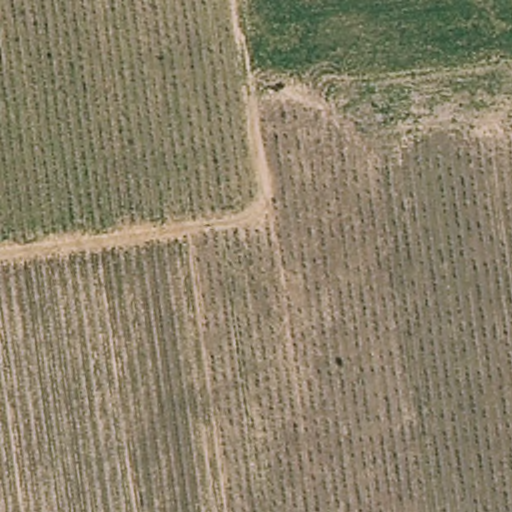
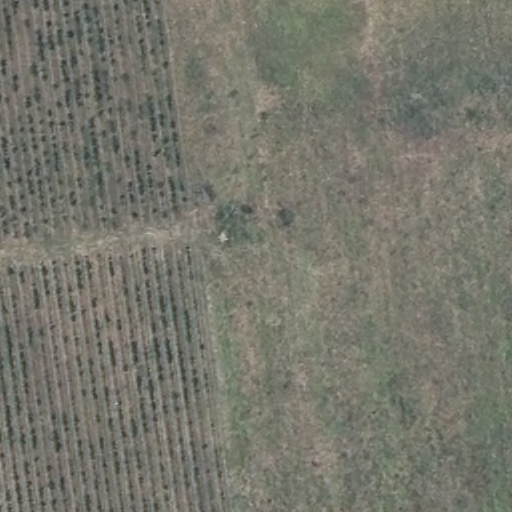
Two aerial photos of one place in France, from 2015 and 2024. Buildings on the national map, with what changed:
[]

